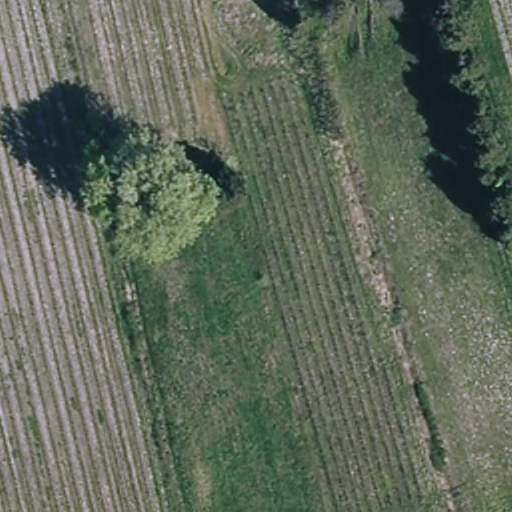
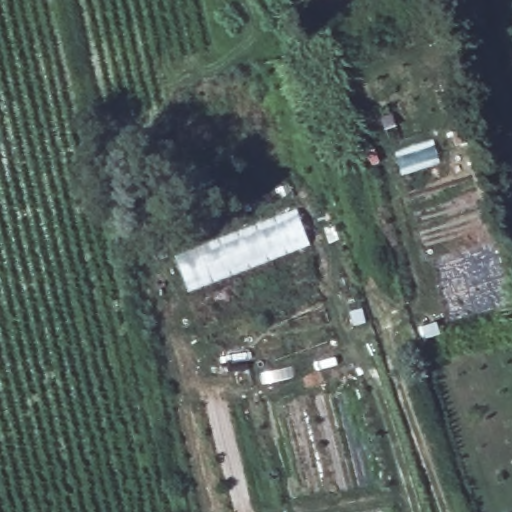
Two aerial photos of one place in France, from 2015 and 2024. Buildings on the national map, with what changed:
new [(189,291),(175,255),(297,207),(311,243),(189,291)]

